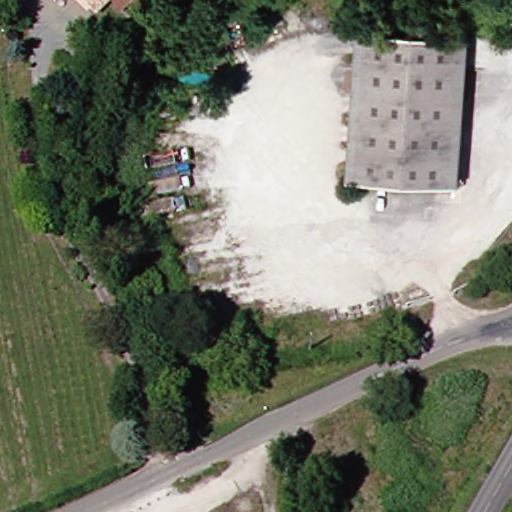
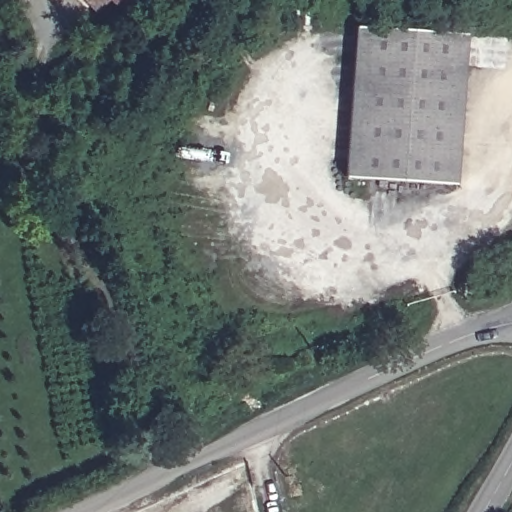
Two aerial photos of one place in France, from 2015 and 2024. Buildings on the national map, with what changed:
unchanged [(88,7),(80,0),(95,0),(88,7)]
unchanged [(130,0),(121,9),(111,0),(130,0)]
unchanged [(462,184),(354,175),(365,26),(472,37),(462,184)]

